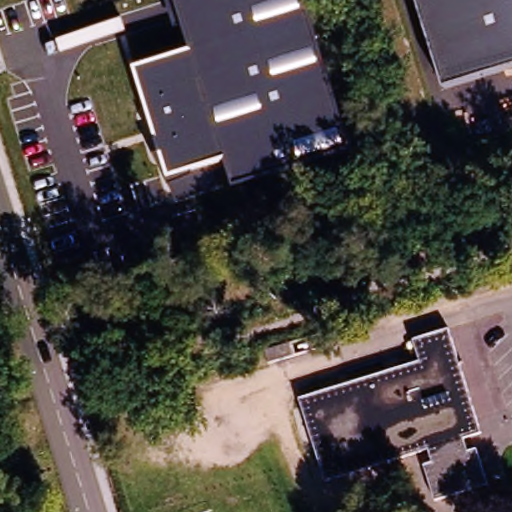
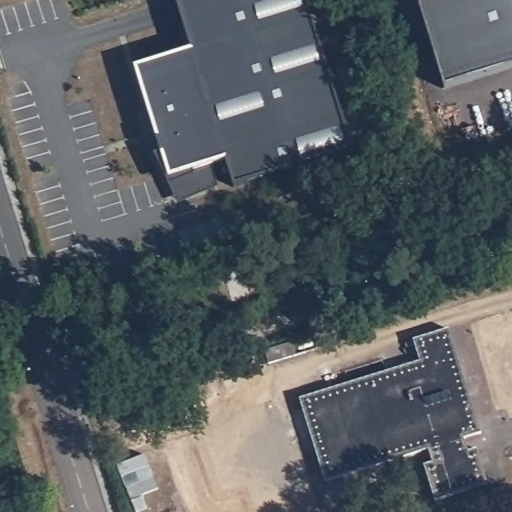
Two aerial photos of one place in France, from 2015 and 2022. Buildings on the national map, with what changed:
unchanged [(236,189),(233,181),(174,200),(168,180),(134,68),(181,52),(166,0),(306,0),(351,156),(236,189)]
unchanged [(446,88),(418,0),(512,0),(512,67),(446,88)]
unchanged [(419,359),(413,334),(447,325),(480,433),(466,437),(470,450),(478,448),(489,483),(436,500),(424,463),(433,461),(429,449),(324,478),(298,393),(419,359)]

